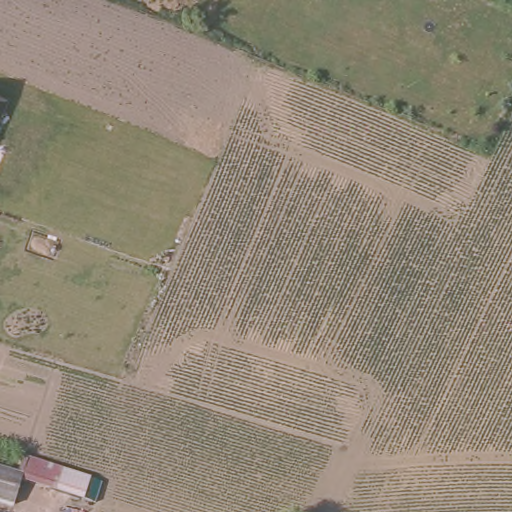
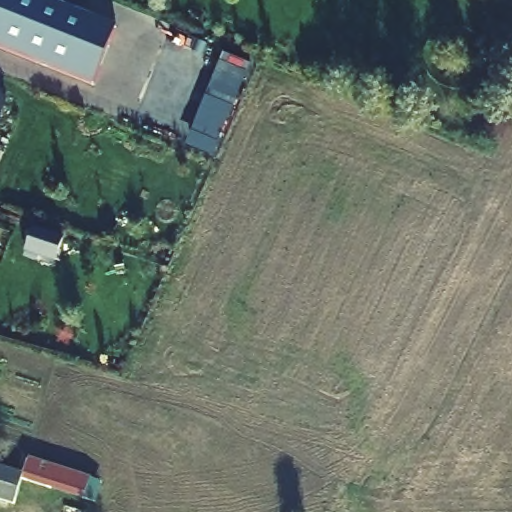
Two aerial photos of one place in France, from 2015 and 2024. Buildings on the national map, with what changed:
new [(118,29),(96,85),(0,48),(0,0),(43,0),(118,29)]
unchanged [(3,99),(0,106),(0,98),(3,99)]
unchanged [(22,501),(0,495),(0,453),(33,463),(35,457),(64,464),(58,485),(29,478),(22,501)]

